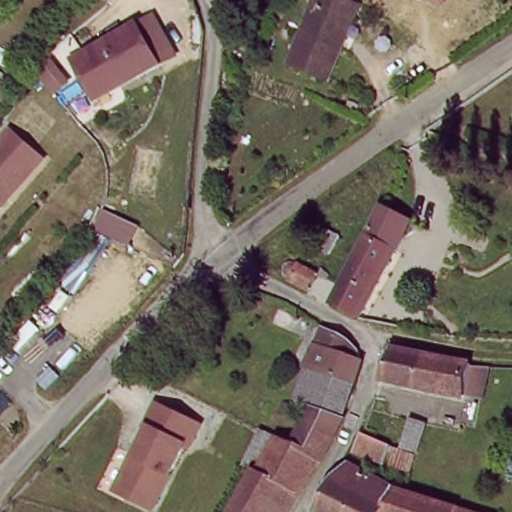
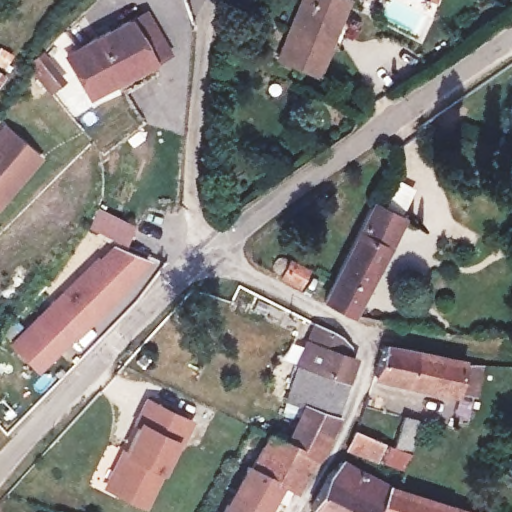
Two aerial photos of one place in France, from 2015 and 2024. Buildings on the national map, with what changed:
unchanged [(282,55),(302,0),(349,0),(336,40),(333,39),(323,69),(282,55)]
unchanged [(435,1),(432,0),(436,0),(435,1)]
unchanged [(67,69),(123,24),(137,14),(164,51),(150,61),(93,104),(67,69)]
unchanged [(0,128),(2,126),(38,152),(0,198),(0,128)]
unchanged [(351,250),(363,226),(377,197),(406,212),(378,265),(351,250)]
new [(77,337),(72,334),(36,370),(7,343),(95,254),(100,257),(112,244),(150,260),(77,337)]
unchanged [(353,312),(350,310),(332,301),(327,298),(337,278),(351,250),(378,265),(353,312)]
unchanged [(308,290),(283,277),(285,275),(282,273),(282,272),(281,270),(281,268),(282,266),(284,263),(285,262),(287,261),(289,261),(292,262),(293,260),(317,272),(308,290)]
unchanged [(341,331),(343,332),(355,346),(350,356),(356,358),(349,380),(300,362),(320,321),(341,331)]
unchanged [(377,377),(380,367),(387,348),(412,352),(430,356),(470,366),(463,396),(377,377)]
unchanged [(282,482),(266,512),(225,512),(231,500),(234,502),(252,467),(237,460),(245,445),(255,423),(288,437),(297,420),(304,405),(288,398),(300,362),(349,380),(347,385),(337,417),(333,430),(332,433),(312,465),(297,490),(282,482)]
unchanged [(182,448),(177,446),(145,508),(110,491),(142,427),(137,425),(150,402),(154,405),(193,425),(182,448)]
unchanged [(407,414),(422,418),(415,442),(415,447),(401,441),(397,440),(407,414)]
unchanged [(388,457),(350,442),(358,423),(388,436),(395,438),(388,457)]
unchanged [(345,452),(390,477),(405,482),(489,512),(338,512),(314,499),(330,470),(331,467),(345,452)]

